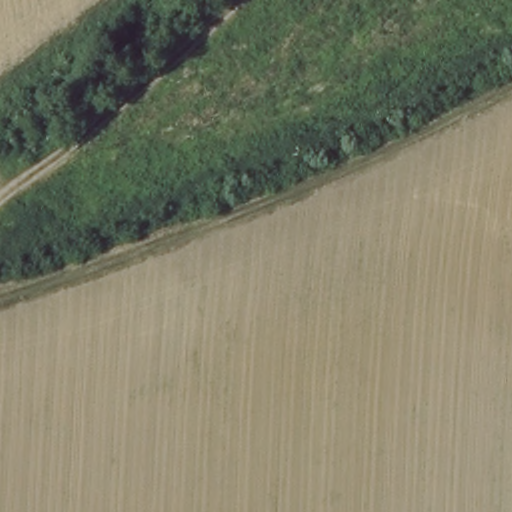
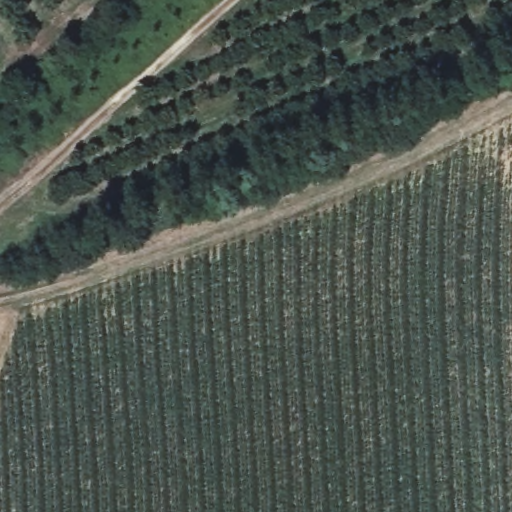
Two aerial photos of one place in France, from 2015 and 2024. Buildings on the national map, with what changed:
[]

